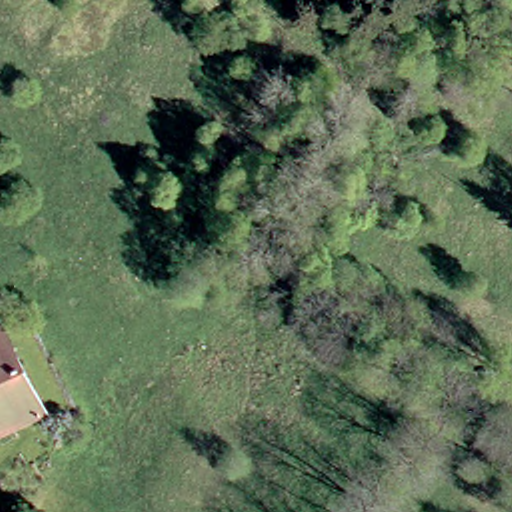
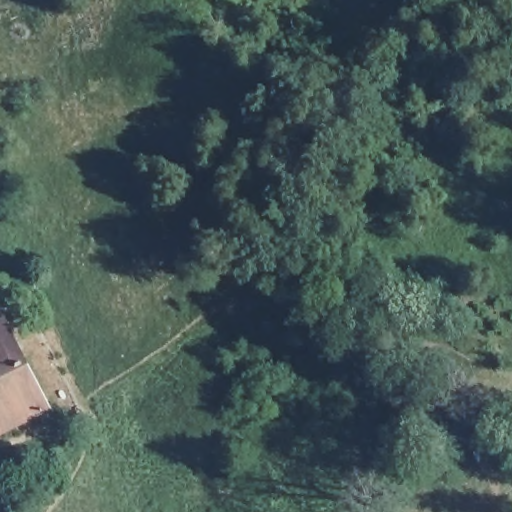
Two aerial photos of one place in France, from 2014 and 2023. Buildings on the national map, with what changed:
unchanged [(47,409),(7,428),(4,430),(0,432),(0,327),(43,403),(47,409)]

